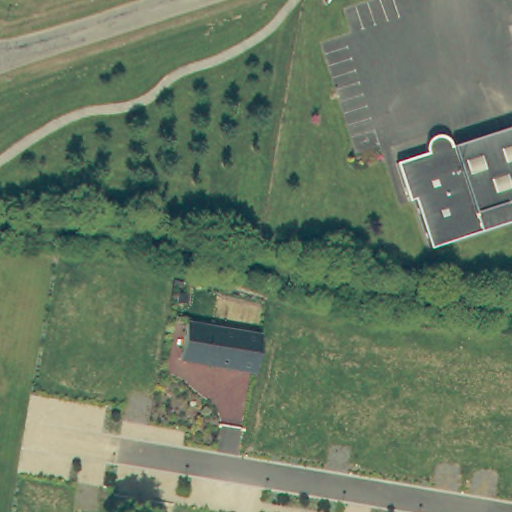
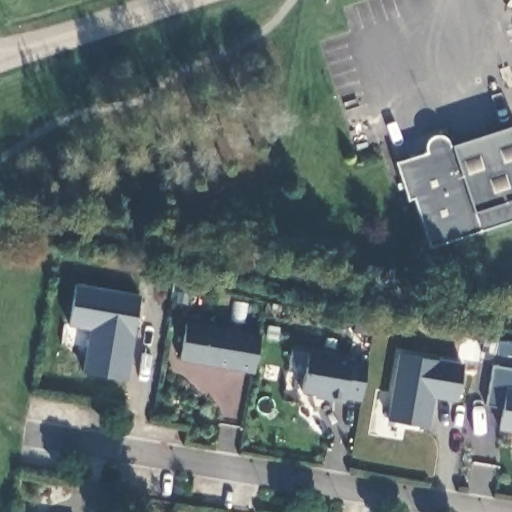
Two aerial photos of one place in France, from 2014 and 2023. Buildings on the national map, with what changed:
unchanged [(512,123),(512,214),(427,245),(411,196),(405,197),(391,157),(421,147),(420,145),(420,142),(421,137),(423,135),(425,132),(428,131),(431,130),(435,130),(440,131),(442,134),(445,137),(447,140),(481,127),(510,117),(512,123)]
new [(127,380),(84,373),(90,330),(68,326),(75,282),(140,293),(127,380)]
unchanged [(262,333),(256,373),(180,361),(187,322),(262,333)]
new [(369,361),(361,400),(347,398),(346,403),(315,398),(316,394),(303,392),(310,351),(369,361)]
new [(459,402),(437,398),(431,427),(389,420),(401,353),(464,363),(459,402)]
new [(508,388),(504,408),(487,405),(494,365),(512,369),(512,389),(508,388)]
new [(500,429),(508,388),(512,389),(512,431),(500,429)]

